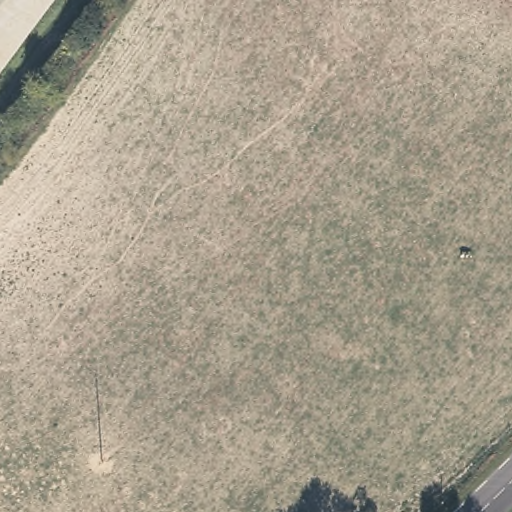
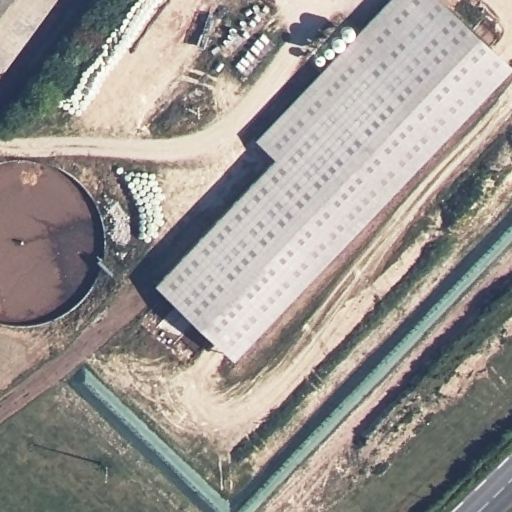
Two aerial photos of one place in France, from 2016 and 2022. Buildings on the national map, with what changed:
unchanged [(0,0),(45,0),(0,60),(0,0)]
new [(254,139),(388,0),(444,0),(512,65),(512,66),(233,359),(151,283),(274,158),(254,139)]

